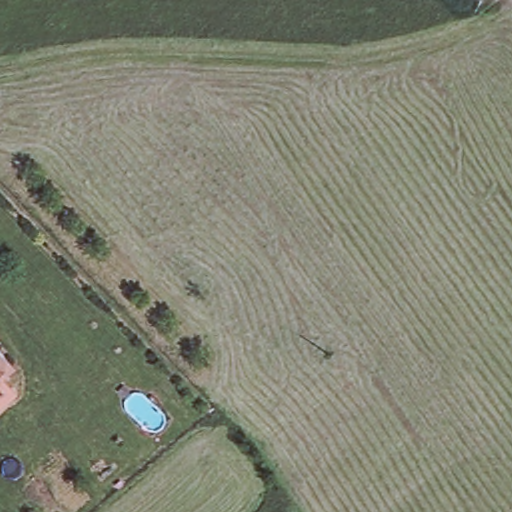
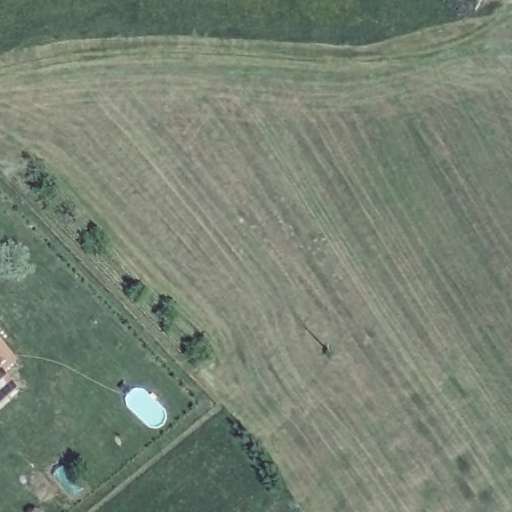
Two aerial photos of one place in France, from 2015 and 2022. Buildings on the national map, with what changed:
unchanged [(0,351),(14,366),(0,378),(0,351)]

